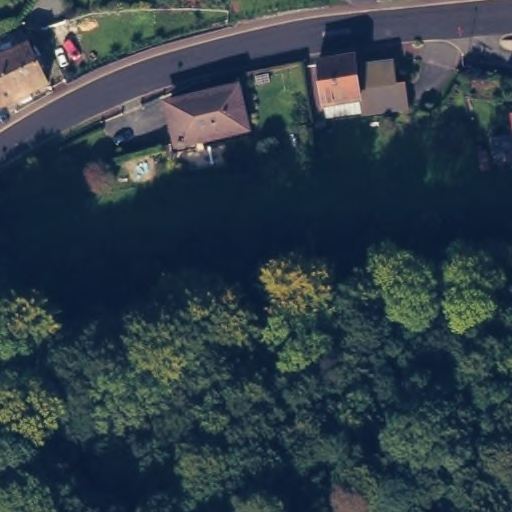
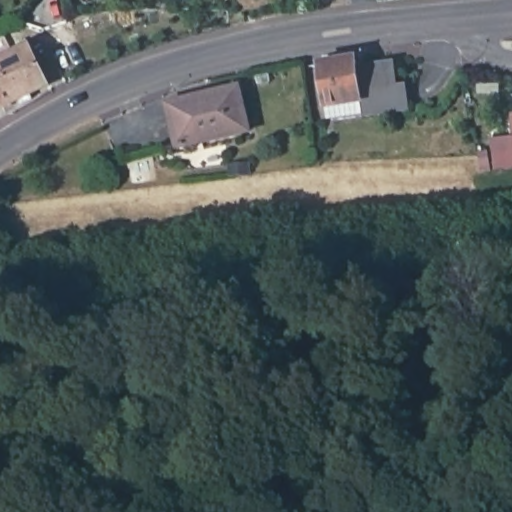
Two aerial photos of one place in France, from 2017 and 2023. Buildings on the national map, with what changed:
unchanged [(7,59),(35,43),(55,79),(12,103),(10,98),(0,104),(0,54),(3,52),(7,59)]
unchanged [(364,50),(365,58),(400,54),(404,78),(412,77),(415,101),(337,111),(337,105),(333,106),(325,56),(364,50)]
unchanged [(262,117),(248,119),(193,131),(186,98),(212,92),(210,86),(252,76),(260,109),(262,117)]

